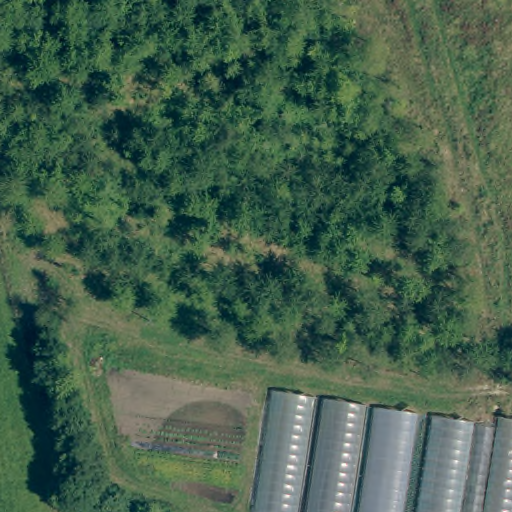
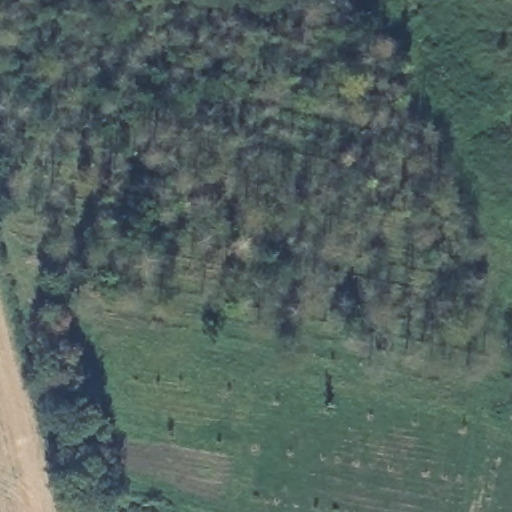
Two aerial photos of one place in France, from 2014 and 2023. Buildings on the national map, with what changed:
demolished [(275,388),(512,422),(512,512),(256,512),(275,388)]

